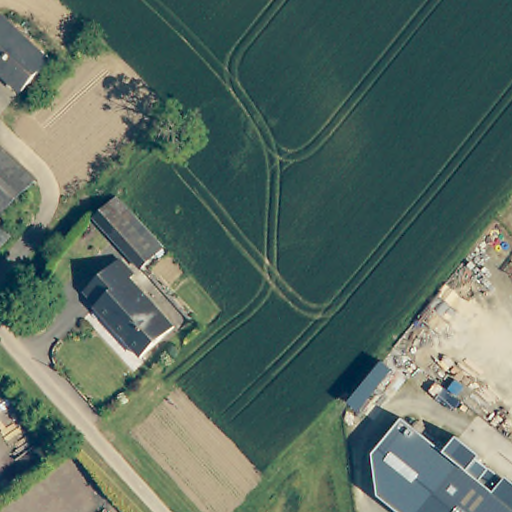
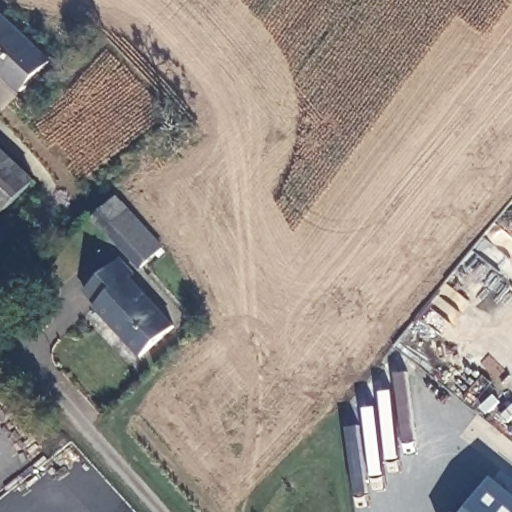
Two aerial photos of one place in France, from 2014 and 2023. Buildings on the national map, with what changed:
unchanged [(48,61),(20,91),(0,72),(0,15),(48,61)]
unchanged [(32,175),(0,210),(0,146),(32,175)]
unchanged [(162,242),(139,261),(93,211),(116,191),(162,242)]
unchanged [(10,228),(0,239),(0,219),(10,228)]
unchanged [(132,271),(128,275),(170,322),(137,353),(92,303),(95,300),(85,287),(119,257),(132,271)]
demolished [(446,451),(458,435),(482,455),(471,470),(481,478),(491,466),(507,479),(498,489),(496,491),(512,504),(512,512),(399,512),(379,495),(374,453),(404,417),(446,451)]
new [(496,479),(512,492),(512,512),(470,512),(496,479)]

